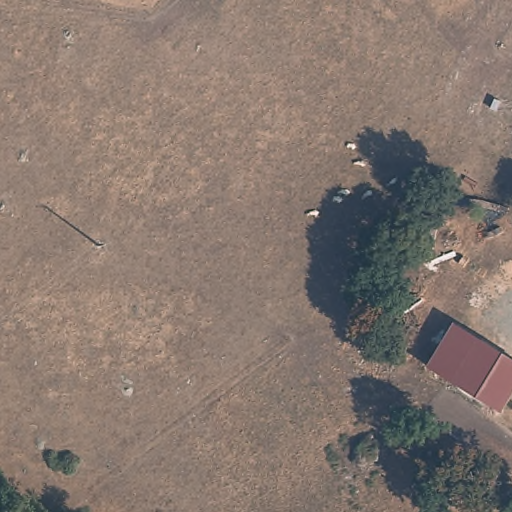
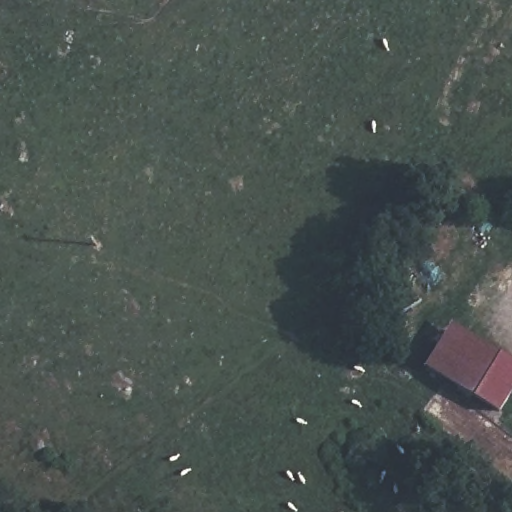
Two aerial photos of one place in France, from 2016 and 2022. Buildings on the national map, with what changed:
unchanged [(512,360),(512,394),(502,412),(427,364),(453,324),(512,360)]

